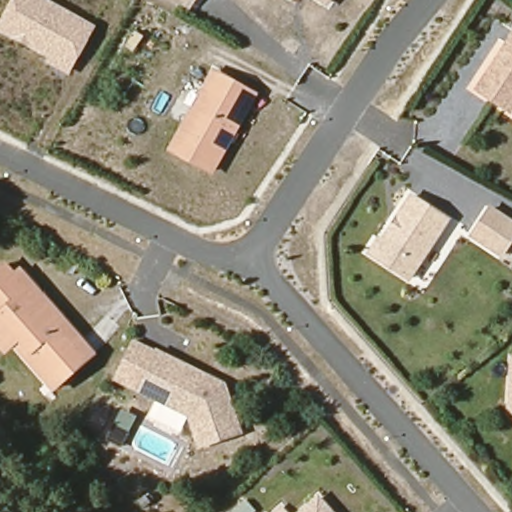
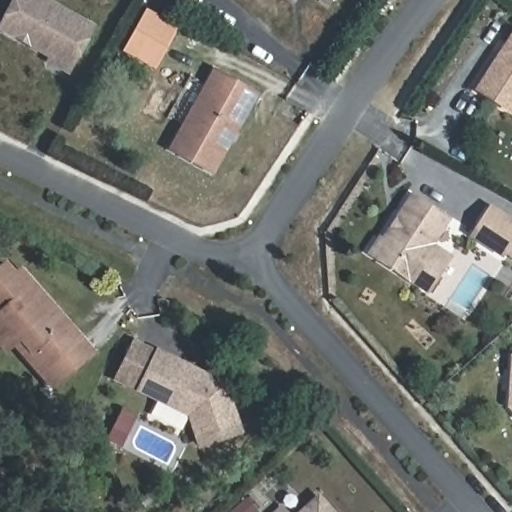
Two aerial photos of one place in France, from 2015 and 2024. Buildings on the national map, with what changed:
unchanged [(69,71),(50,61),(52,56),(0,27),(15,0),(44,0),(94,28),(69,71)]
unchanged [(185,0),(192,0),(190,4),(185,0)]
unchanged [(320,0),(329,0),(327,4),(320,0)]
new [(122,53),(147,10),(179,26),(156,70),(122,53)]
unchanged [(482,90),(481,84),(512,37),(512,105),(510,109),(482,90)]
unchanged [(210,166),(172,144),(210,81),(220,88),(228,74),(256,90),(210,166)]
unchanged [(407,278),(369,253),(378,239),(382,241),(411,196),(446,219),(407,278)]
unchanged [(470,236),(490,204),(512,218),(512,244),(502,258),(470,236)]
unchanged [(92,359),(57,387),(30,354),(35,350),(5,313),(0,316),(0,272),(12,263),(22,276),(29,271),(40,284),(71,322),(98,354),(92,359)]
unchanged [(53,391),(15,344),(11,348),(0,334),(0,316),(5,313),(35,350),(30,354),(57,387),(53,391)]
unchanged [(162,353),(142,389),(116,375),(136,339),(162,353)]
unchanged [(202,447),(194,415),(142,389),(162,353),(227,386),(242,434),(202,447)]
unchanged [(510,360),(512,360),(512,413),(507,407),(510,360)]
unchanged [(323,499),(335,512),(307,512),(323,499)]
unchanged [(286,508),(290,512),(280,512),(286,508)]

